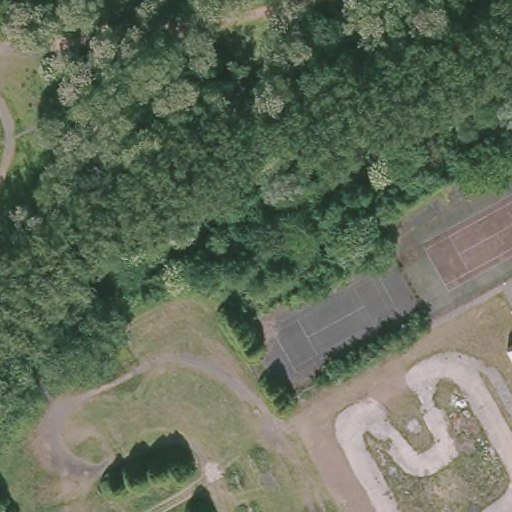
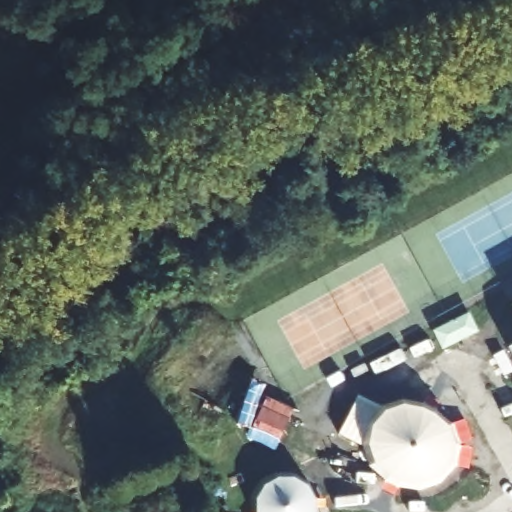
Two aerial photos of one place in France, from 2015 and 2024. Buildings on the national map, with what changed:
new [(467,313),(476,332),(445,348),(435,329),(467,313)]
unchanged [(512,353),(507,343),(512,341),(512,353)]
new [(443,471),(417,483),(403,482),(390,476),(380,467),(372,457),(368,446),(369,434),(374,422),(381,413),(392,407),(404,406),(416,408),(430,415),(441,423),(448,433),(453,447),(450,462),(443,471)]
new [(306,487),(311,492),(314,500),(315,508),(314,512),(255,512),(255,506),(255,498),(258,491),(263,485),(270,481),(277,477),(285,477),(293,478),(300,482),(306,487)]

